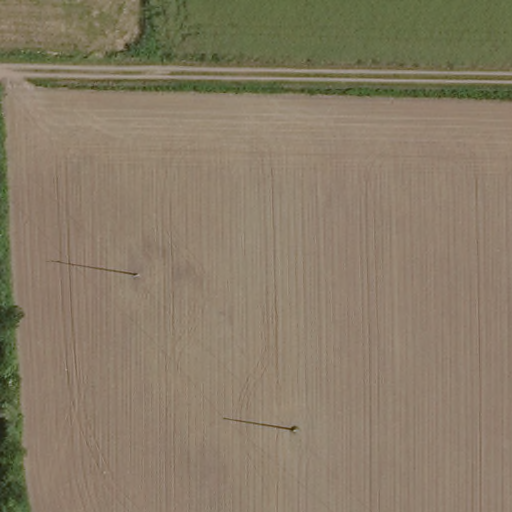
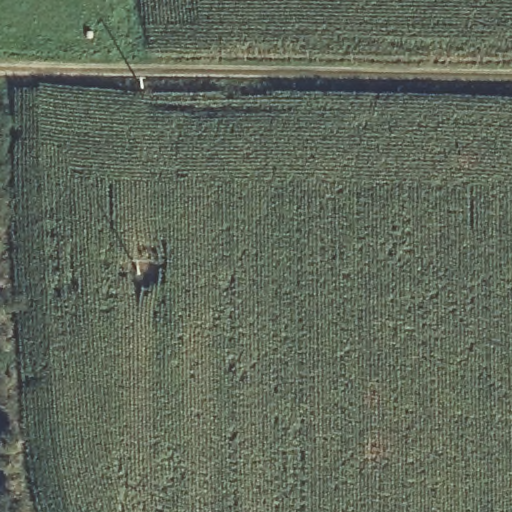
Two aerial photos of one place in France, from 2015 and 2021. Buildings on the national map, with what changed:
[]

